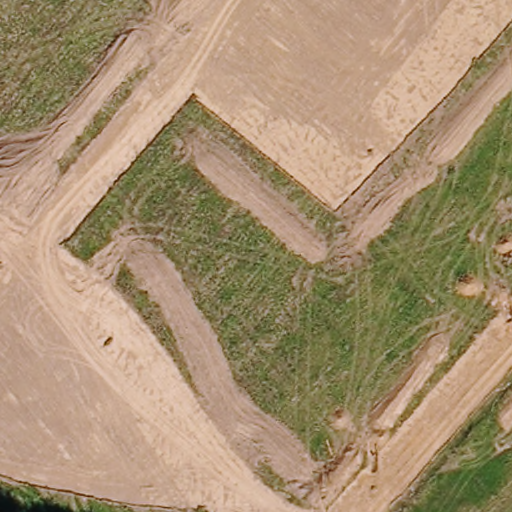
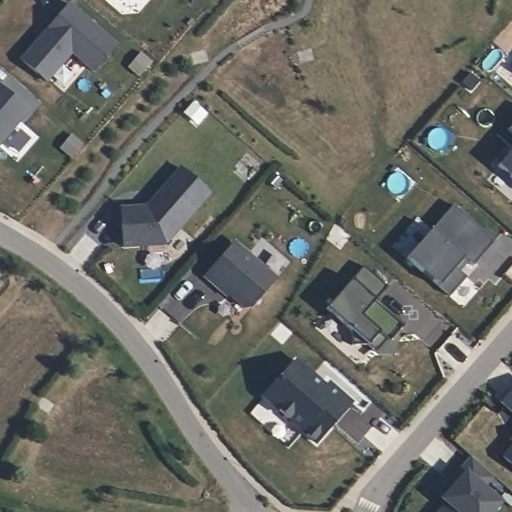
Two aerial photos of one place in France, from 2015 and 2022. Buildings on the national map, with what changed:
new [(70,5),(118,46),(94,72),(73,54),(47,82),(22,60),(70,5)]
new [(0,144),(0,86),(29,111),(0,144)]
new [(497,131),(512,113),(512,144),(497,131)]
new [(498,162),(512,146),(512,174),(498,162)]
new [(159,193),(181,168),(211,194),(166,245),(123,247),(121,209),(148,206),(159,193)]
new [(452,200),(495,237),(474,262),(465,254),(456,264),(466,273),(450,292),(406,253),(452,200)]
new [(217,288),(205,277),(235,242),(277,278),(253,307),(244,307),(228,294),(226,297),(217,288)]
new [(396,350),(379,351),(376,347),(366,340),(351,341),(351,326),(326,304),(364,261),(388,282),(376,296),(404,321),(390,336),(394,340),(396,350)]
new [(295,356),(312,370),(312,375),(318,380),(320,377),(325,382),(328,377),(351,398),(316,438),(263,391),(295,356)]
new [(502,397),(512,386),(512,407),(502,397)]
new [(511,435),(512,433),(512,435),(511,435)]
new [(503,452),(512,441),(512,460),(503,452)]
new [(441,494),(454,480),(449,476),(470,452),(492,471),(482,482),(500,498),(488,512),(432,512),(445,497),(441,494)]

